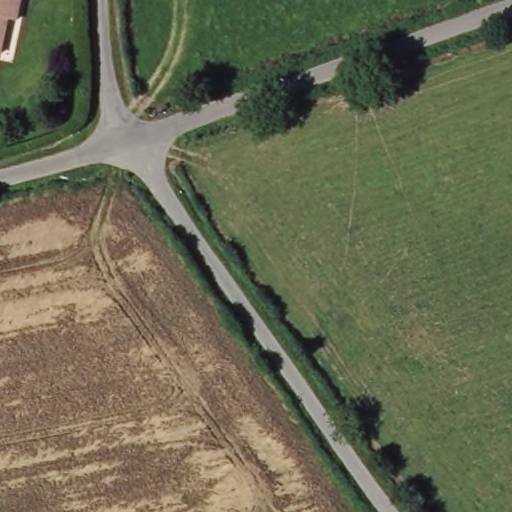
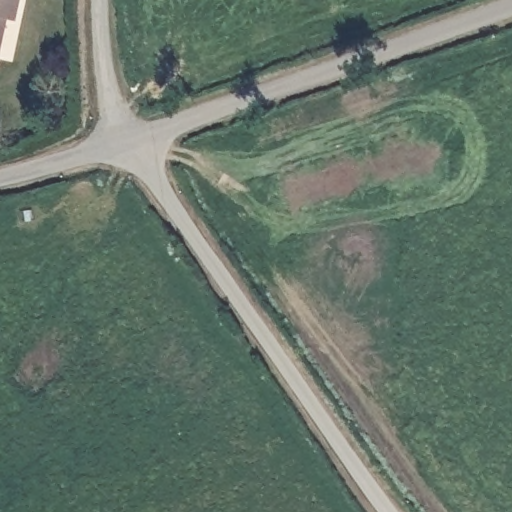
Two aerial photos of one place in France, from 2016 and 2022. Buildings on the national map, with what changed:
unchanged [(14,19),(6,17),(0,42),(0,0),(19,0),(14,19)]

